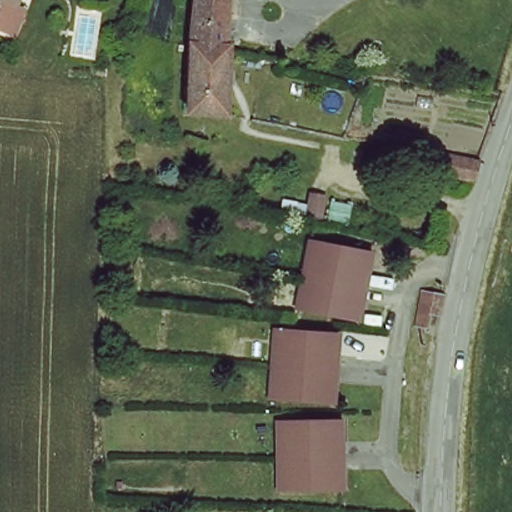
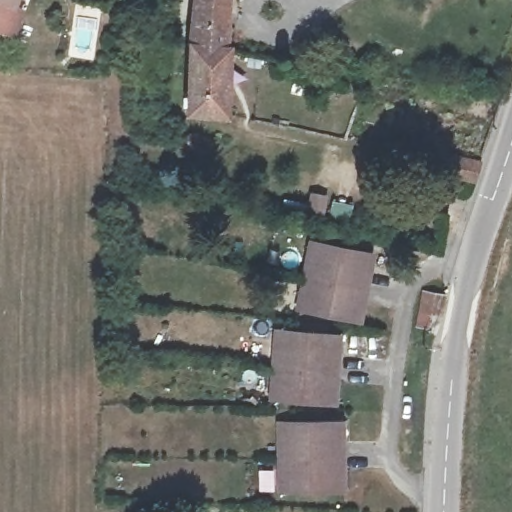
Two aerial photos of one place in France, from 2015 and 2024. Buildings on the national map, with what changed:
unchanged [(15,28),(0,24),(0,0),(15,0),(13,4),(21,6),(15,28)]
unchanged [(190,0),(225,0),(220,46),(185,46),(190,0)]
unchanged [(220,46),(221,54),(221,113),(184,115),(185,46),(220,46)]
unchanged [(438,173),(442,156),(476,162),(471,180),(438,173)]
unchanged [(302,217),(309,193),(324,196),(317,220),(302,217)]
unchanged [(293,313),(304,242),(366,252),(356,321),(293,313)]
unchanged [(433,337),(418,333),(425,289),(443,292),(433,337)]
unchanged [(268,398),(273,331),(335,335),(330,402),(268,398)]
unchanged [(280,496),(278,423),(342,420),(344,493),(280,496)]

